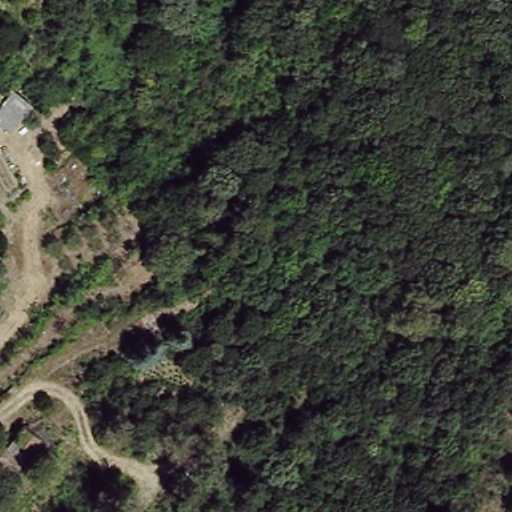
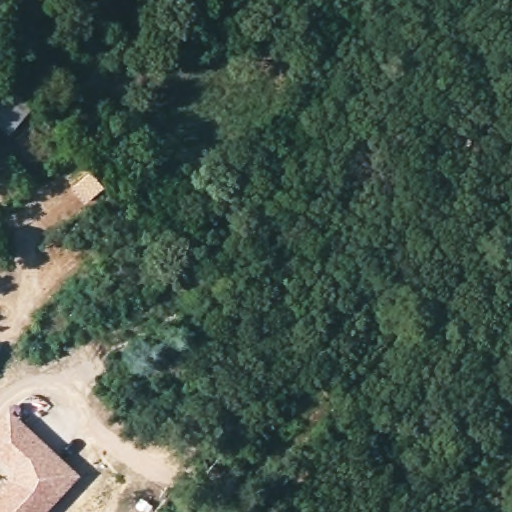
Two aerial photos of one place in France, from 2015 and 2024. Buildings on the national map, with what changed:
unchanged [(22,119),(7,136),(0,130),(0,121),(10,109),(22,119)]
new [(8,408),(79,475),(45,512),(0,512),(0,487),(7,480),(7,467),(0,460),(0,417),(8,408)]
demolished [(22,423),(38,440),(26,456),(8,440),(22,423)]

